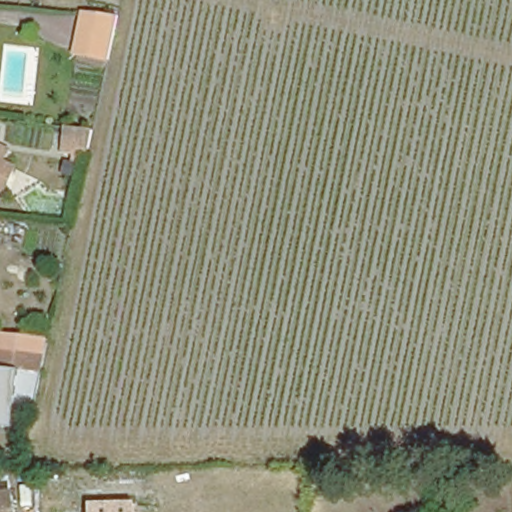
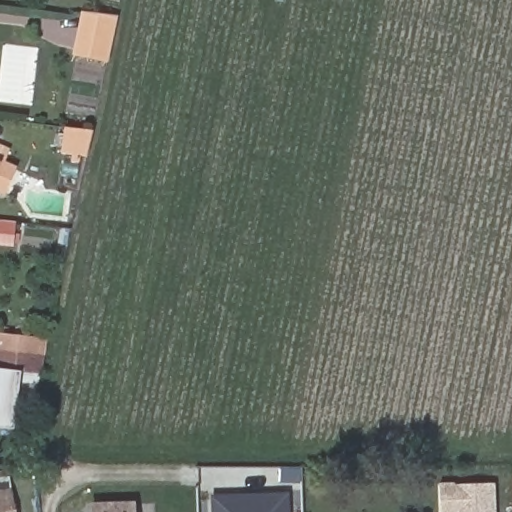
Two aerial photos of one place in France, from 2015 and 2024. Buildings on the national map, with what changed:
unchanged [(108,60),(75,52),(84,11),(118,15),(108,60)]
unchanged [(87,154),(62,150),(65,125),(92,129),(87,154)]
unchanged [(7,164),(20,170),(5,200),(0,197),(0,144),(13,150),(7,164)]
new [(14,247),(0,246),(0,220),(16,222),(14,247)]
unchanged [(0,336),(41,341),(39,354),(44,355),(33,410),(0,405),(0,336)]
unchanged [(0,512),(0,478),(3,477),(10,512),(0,512)]
new [(497,512),(443,512),(442,485),(496,483),(497,512)]
new [(290,512),(211,512),(211,495),(289,492),(290,512)]
unchanged [(148,498),(149,512),(87,512),(87,498),(148,498)]

